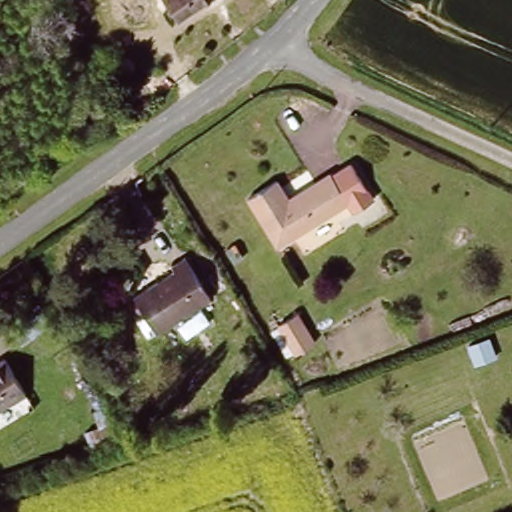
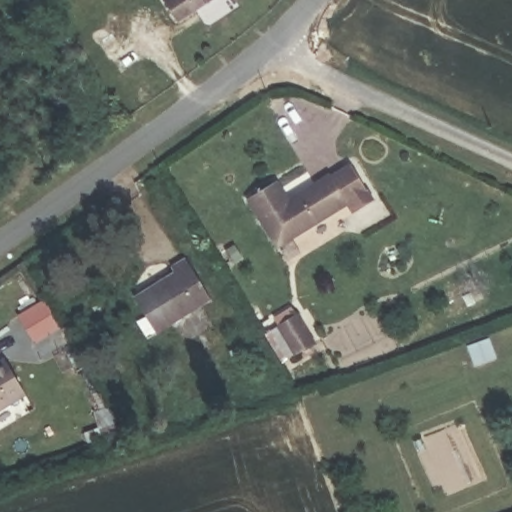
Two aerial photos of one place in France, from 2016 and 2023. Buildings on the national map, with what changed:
unchanged [(212,0),(172,29),(153,0),(212,0)]
unchanged [(343,161),(366,195),(347,208),(342,200),(272,247),(240,199),(268,179),(282,199),(323,171),(324,173),(343,161)]
unchanged [(132,298),(172,270),(168,264),(180,255),(208,296),(155,333),(132,298)]
new [(43,301),(60,325),(36,340),(21,316),(43,301)]
unchanged [(270,325),(285,314),(305,341),(289,352),(270,325)]
unchanged [(465,337),(484,330),(488,344),(490,349),(471,356),(468,348),(465,337)]
unchanged [(23,393),(0,409),(0,364),(3,362),(23,393)]

